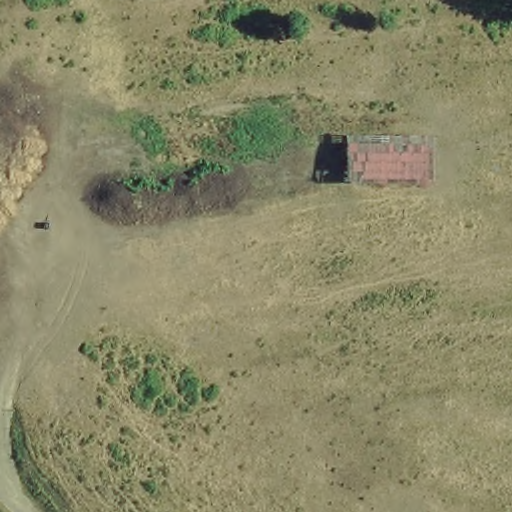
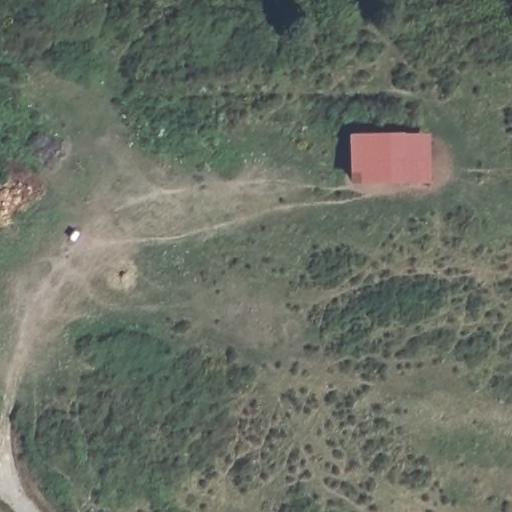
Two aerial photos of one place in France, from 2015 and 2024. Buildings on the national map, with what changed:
unchanged [(354,185),(353,137),(432,137),(432,184),(354,185)]

